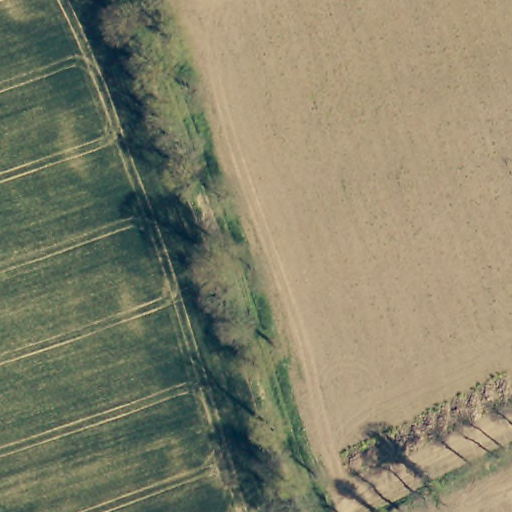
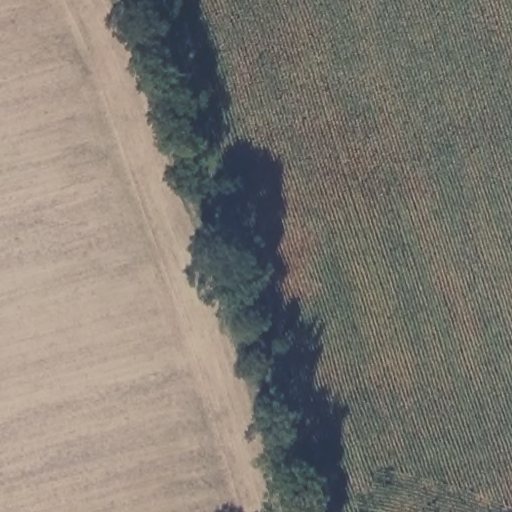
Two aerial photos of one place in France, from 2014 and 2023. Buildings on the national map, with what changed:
[]

